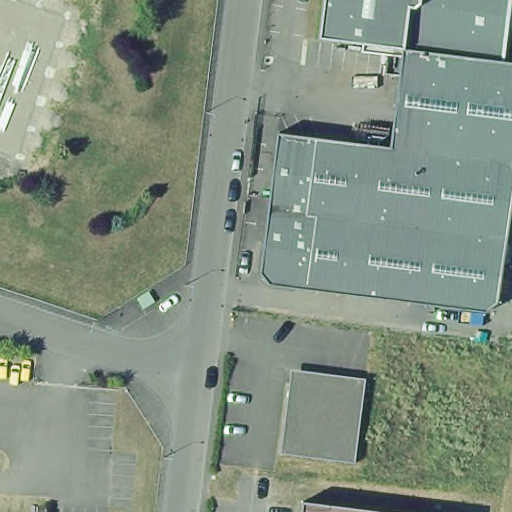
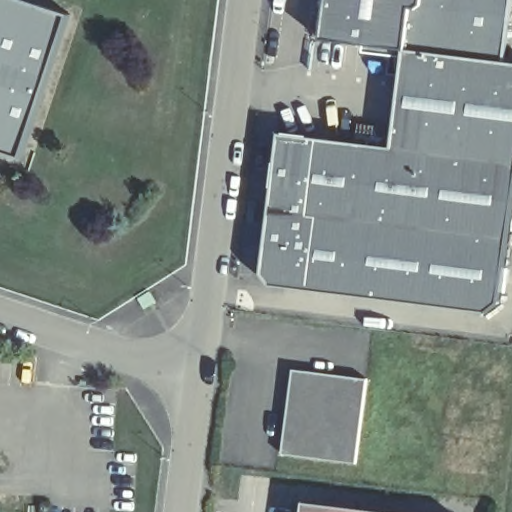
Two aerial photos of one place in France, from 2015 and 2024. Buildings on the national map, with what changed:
new [(0,152),(0,0),(26,0),(69,14),(20,158),(0,152)]
unchanged [(405,52),(321,36),(326,0),(510,0),(503,59),(512,61),(512,213),(498,308),(261,279),(277,133),(390,147),(405,52)]
unchanged [(367,378),(356,460),(284,451),(295,367),(367,378)]
unchanged [(384,512),(302,512),(303,502),(384,512)]

